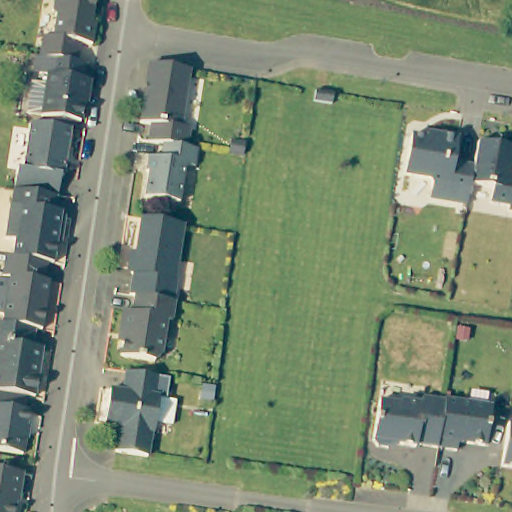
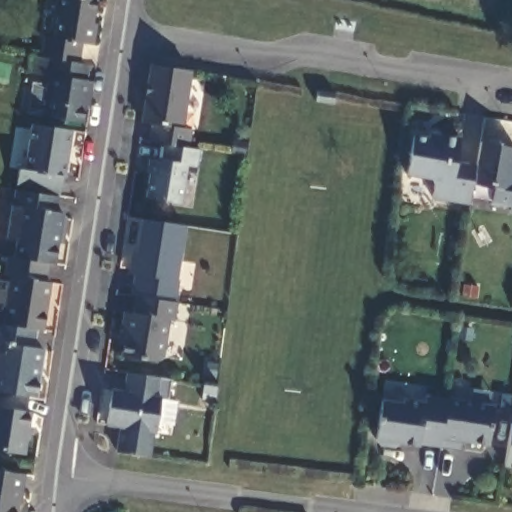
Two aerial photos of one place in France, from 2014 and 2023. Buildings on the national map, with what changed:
unchanged [(97,23),(101,23),(97,44),(86,43),(84,62),(45,57),(49,36),(59,37),(61,15),(59,10),(60,0),(101,0),(97,23)]
unchanged [(37,82),(52,84),(54,74),(40,72),(42,56),(45,57),(84,62),(90,63),(89,79),(95,80),(93,97),(90,96),(86,121),(47,116),(47,114),(32,112),(37,82)]
unchanged [(195,70),(186,127),(196,129),(193,148),(169,144),(154,142),(156,124),(146,122),(155,64),(195,70)]
unchanged [(318,90),(335,92),(333,103),(315,100),(316,90),(318,90)]
unchanged [(76,130),(69,177),(66,176),(64,196),(62,196),(20,189),(22,168),(29,169),(36,123),(76,130)]
unchanged [(472,183),(468,203),(432,197),(435,183),(430,178),(405,173),(412,135),(427,138),(428,133),(460,138),(455,163),(475,166),(472,183)]
unchanged [(512,211),(510,210),(510,205),(491,202),(493,187),(472,183),(475,166),(479,141),(512,147),(512,211)]
unchanged [(193,148),(204,149),(201,166),(191,165),(185,203),(150,197),(154,172),(151,172),(154,158),(166,160),(169,144),(193,148)]
unchanged [(62,242),(59,263),(54,262),(31,259),(17,257),(20,240),(10,238),(15,205),(16,205),(20,189),(62,196),(60,212),(67,213),(71,218),(69,234),(67,243),(62,242)]
unchanged [(184,225),(176,278),(179,279),(175,301),(135,295),(130,295),(134,274),(129,268),(130,257),(137,252),(142,218),(184,225)]
unchanged [(17,257),(31,259),(54,262),(50,281),(55,282),(47,330),(40,329),(8,324),(15,277),(8,276),(11,256),(17,257)]
unchanged [(175,301),(176,301),(173,320),(167,319),(161,357),(155,361),(121,356),(125,329),(121,329),(124,311),(132,313),(135,295),(175,301)]
unchanged [(8,324),(40,329),(38,347),(48,349),(40,397),(32,396),(0,391),(0,323),(8,324)]
unchanged [(167,399),(160,398),(155,432),(152,431),(149,456),(116,451),(120,429),(120,426),(106,424),(109,402),(111,390),(115,390),(123,391),(126,372),(170,378),(167,399)]
unchanged [(32,396),(30,412),(35,413),(29,454),(0,450),(0,391),(32,396)]
unchanged [(390,447),(379,445),(375,440),(381,400),(401,403),(402,399),(422,403),(423,397),(446,400),(439,447),(418,444),(418,446),(396,443),(390,447)]
unchanged [(493,407),(487,445),(460,441),(459,450),(439,447),(446,400),(493,407)]
unchanged [(510,417),(512,418),(512,461),(503,460),(510,417)]
unchanged [(17,491),(14,512),(0,512),(0,470),(22,473),(20,491),(17,491)]

